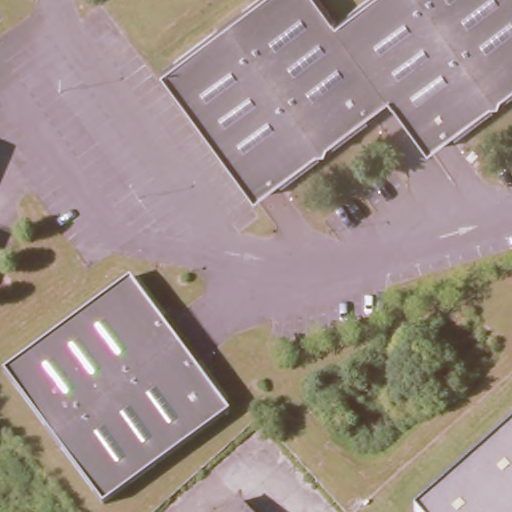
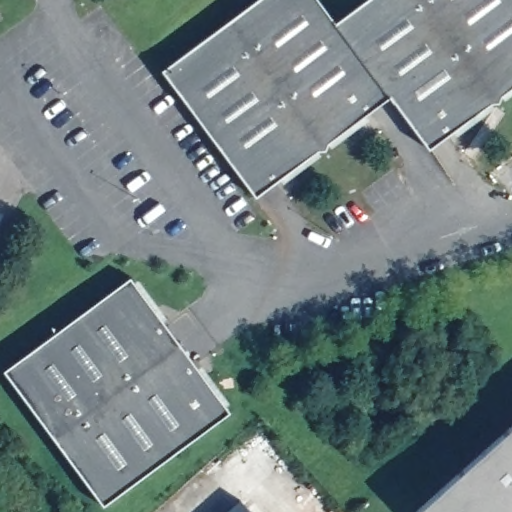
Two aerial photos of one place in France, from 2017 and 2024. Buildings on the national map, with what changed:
unchanged [(312,0),(333,26),(368,0),(512,0),(512,88),(499,98),(497,105),(489,106),(428,152),(388,100),(326,147),(324,154),(316,155),(254,201),(159,75),(259,0),(312,0)]
unchanged [(130,278),(228,413),(101,506),(3,371),(130,278)]
unchanged [(417,510),(512,426),(512,512),(418,512),(417,510)]
unchanged [(236,496),(251,512),(218,512),(236,496)]

